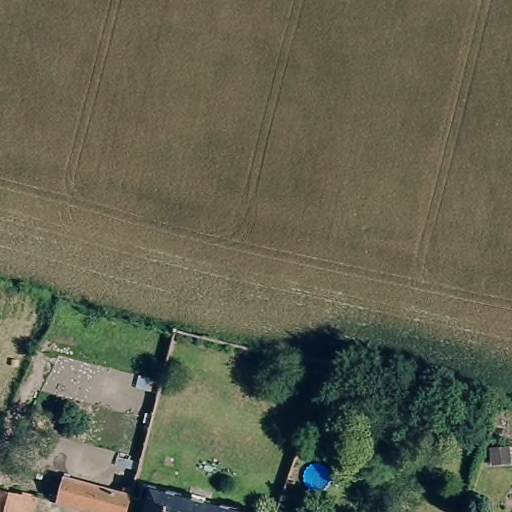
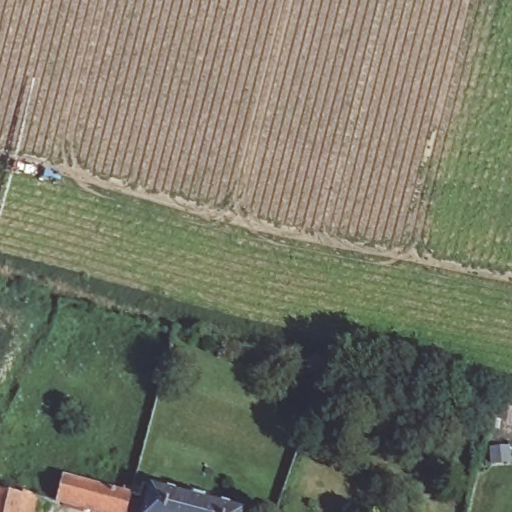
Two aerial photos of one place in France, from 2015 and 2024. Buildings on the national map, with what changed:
unchanged [(107,512),(58,500),(64,478),(65,473),(79,477),(127,489),(128,482),(135,484),(128,512),(107,512)]
unchanged [(136,478),(137,477),(221,501),(248,508),(247,512),(128,512),(135,484),(136,478)]
unchanged [(28,496),(29,491),(43,495),(40,512),(0,512),(0,499),(2,490),(28,496)]

